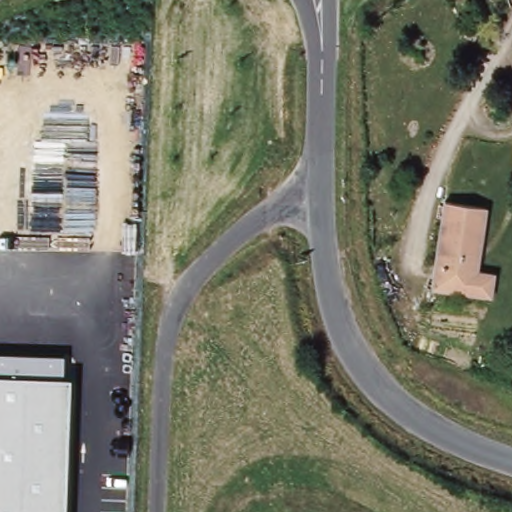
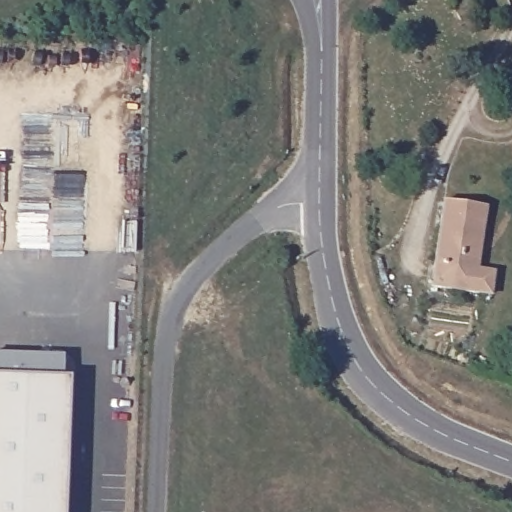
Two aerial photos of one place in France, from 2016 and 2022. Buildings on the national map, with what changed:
unchanged [(448,196),(489,202),(488,228),(504,229),(494,294),(434,284),(448,196)]
unchanged [(61,378),(72,378),(67,512),(0,512),(0,353),(63,356),(61,378)]

